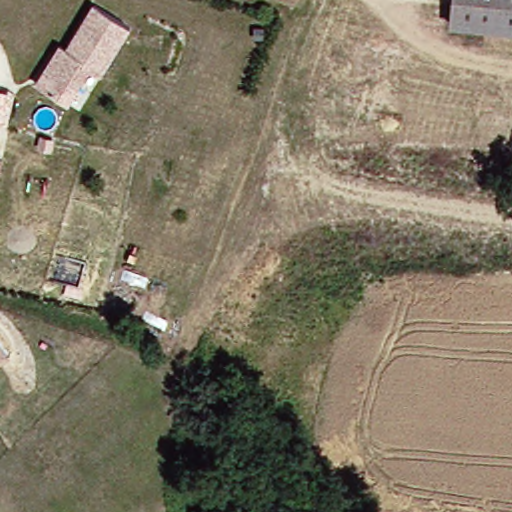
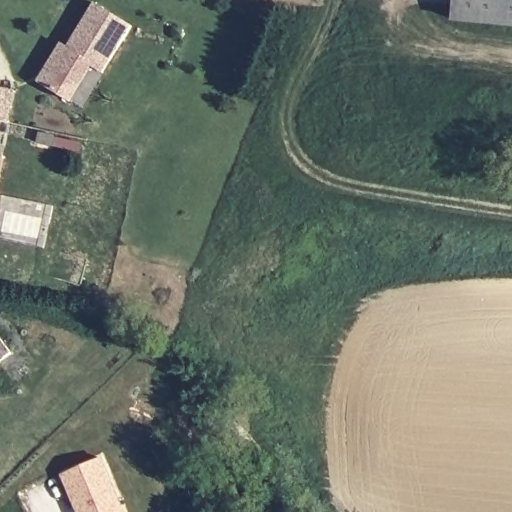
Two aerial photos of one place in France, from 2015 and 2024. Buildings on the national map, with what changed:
unchanged [(456,29),(458,0),(512,0),(512,32),(456,29)]
unchanged [(140,26),(111,74),(100,68),(79,104),(45,85),(63,54),(68,45),(76,49),(101,6),(140,26)]
unchanged [(0,100),(0,94),(1,94),(0,100)]
unchanged [(0,208),(0,158),(11,160),(0,208)]
unchanged [(0,362),(0,330),(15,351),(0,362)]
new [(77,512),(61,474),(105,456),(128,512),(77,512)]

